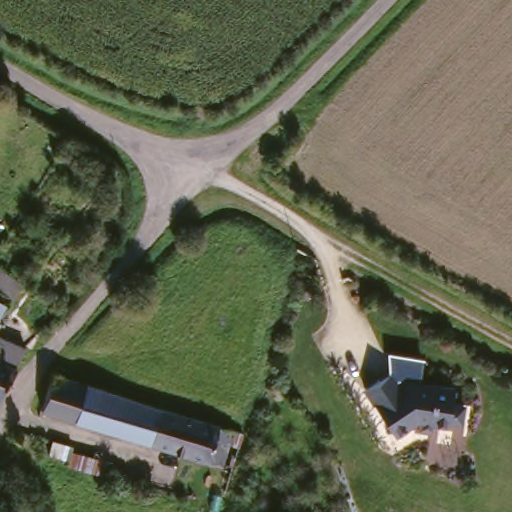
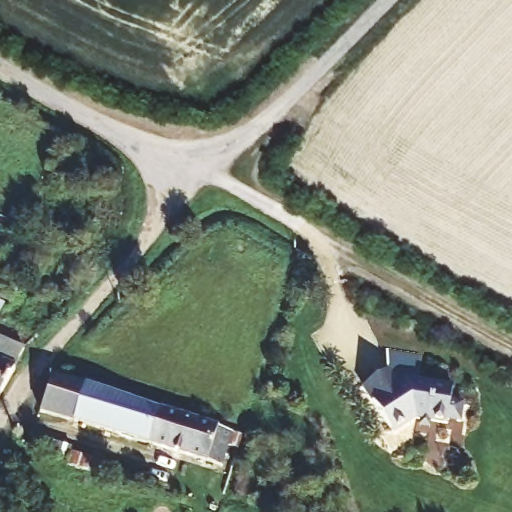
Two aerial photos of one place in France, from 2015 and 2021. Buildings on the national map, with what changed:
unchanged [(9,399),(0,395),(0,357),(26,368),(9,399)]
unchanged [(407,374),(454,381),(451,397),(463,398),(461,416),(448,414),(448,418),(415,413),(393,427),(364,382),(390,364),(400,379),(407,374)]
unchanged [(136,399),(249,428),(241,453),(231,450),(229,460),(45,415),(55,378),(57,379),(136,399)]
unchanged [(59,459),(39,454),(42,441),(45,442),(62,447),(61,452),(99,462),(94,476),(57,464),(59,459)]

